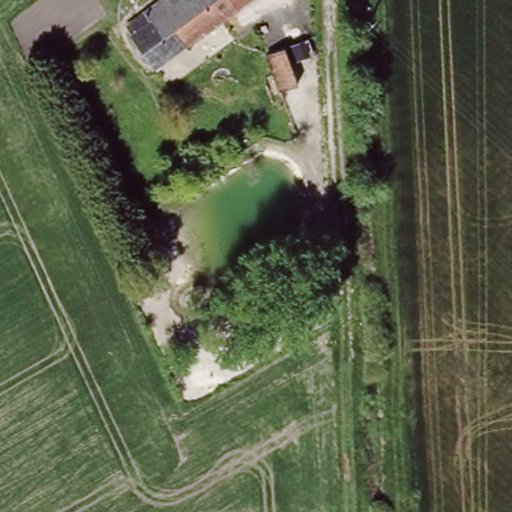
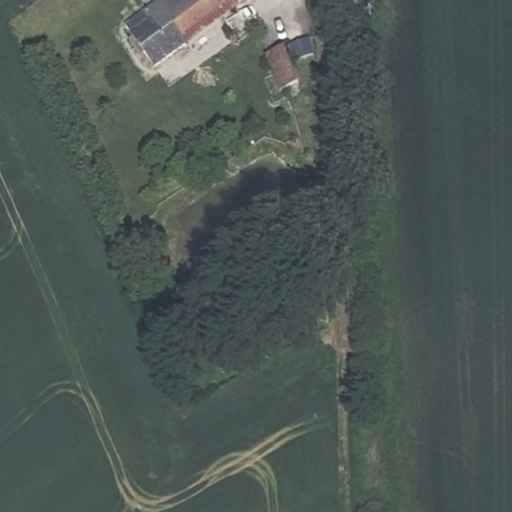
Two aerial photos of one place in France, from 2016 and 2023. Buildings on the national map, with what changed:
unchanged [(156,0),(237,0),(212,18),(209,13),(176,37),(180,45),(150,67),(122,26),(156,0)]
unchanged [(281,48),(292,85),(275,91),(262,54),(281,48)]

